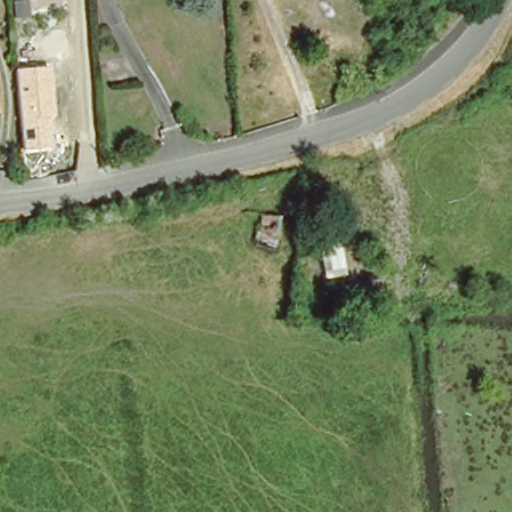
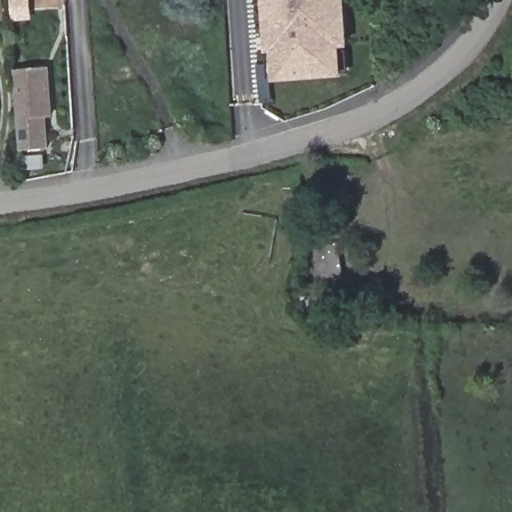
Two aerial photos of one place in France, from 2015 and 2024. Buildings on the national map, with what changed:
new [(272,51),(268,0),(344,0),(345,7),(350,7),(351,28),(346,28),(347,45),(339,45),(340,52),(347,52),(349,74),(341,74),(278,79),(269,79),(267,58),(277,58),(276,51),(272,51)]
unchanged [(55,120),(47,121),(50,147),(21,149),(14,70),(50,66),(55,120)]
demolished [(286,222),(276,260),(254,253),(265,215),(286,222)]

